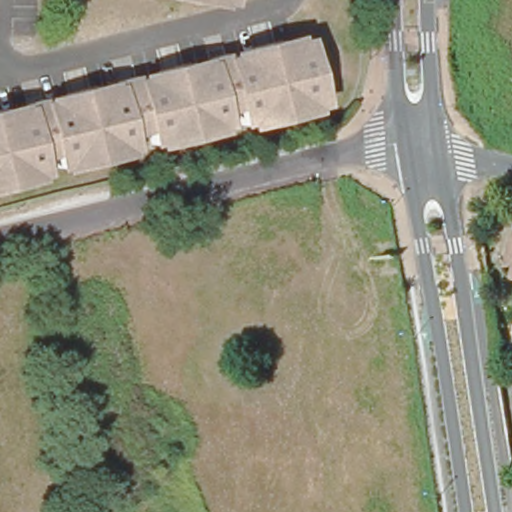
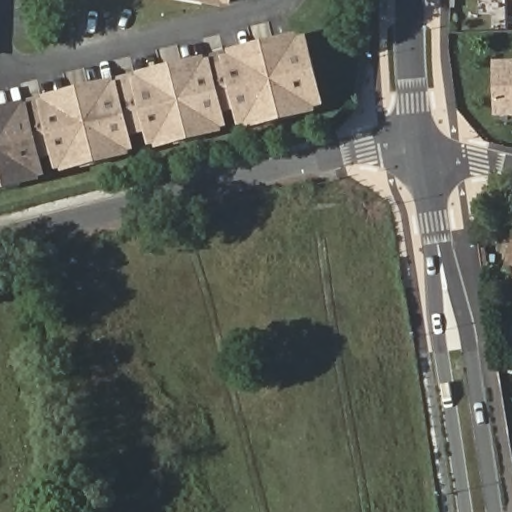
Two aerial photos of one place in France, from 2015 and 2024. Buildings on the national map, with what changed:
unchanged [(301,38),(305,56),(316,103),(304,106),(238,121),(234,104),(220,107),(223,121),(147,138),(144,125),(126,129),(129,143),(53,160),(50,146),(35,149),(39,166),(0,175),(0,106),(301,38)]
new [(512,114),(496,114),(494,62),(512,62),(512,114)]
unchanged [(512,240),(512,265),(507,263),(512,240)]

